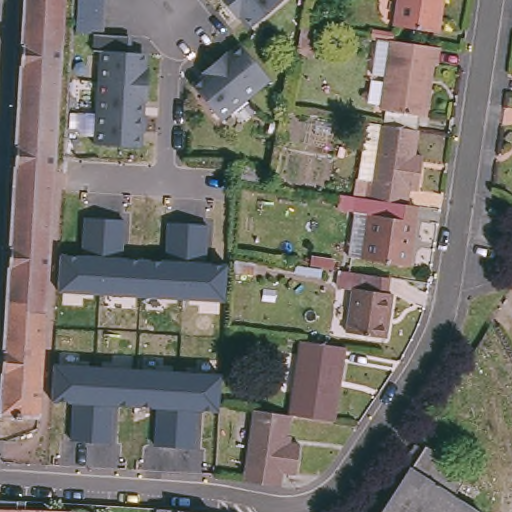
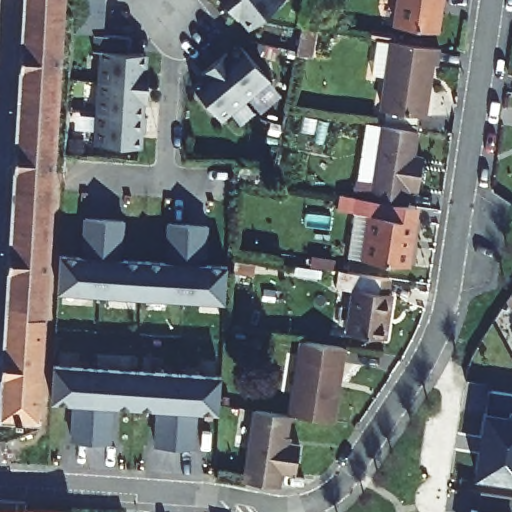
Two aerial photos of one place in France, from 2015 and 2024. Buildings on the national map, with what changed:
unchanged [(38,417),(0,415),(0,381),(23,0),(63,0),(38,417)]
unchanged [(93,42),(94,32),(95,27),(78,26),(78,14),(78,6),(79,0),(108,0),(107,2),(106,15),(106,19),(106,27),(130,29),(130,34),(129,45),(142,46),(147,53),(146,61),(151,61),(150,80),(100,77),(102,43),(93,42)]
unchanged [(228,11),(220,0),(242,0),(228,11)]
unchanged [(287,4),(252,32),(243,21),(239,24),(228,11),(242,0),(285,0),(287,4)]
unchanged [(443,7),(439,7),(435,32),(395,25),(399,0),(444,0),(443,7)]
unchanged [(436,60),(432,60),(423,112),(382,106),(388,64),(375,62),(378,33),(393,35),(439,42),(436,60)]
unchanged [(220,52),(224,56),(238,45),(238,46),(266,81),(240,102),(209,61),(220,52)]
unchanged [(216,121),(188,86),(200,76),(196,72),(209,61),(240,102),(216,121)]
unchanged [(145,96),(144,110),(98,107),(100,77),(150,80),(149,95),(145,96)]
unchanged [(147,126),(142,126),(141,142),(96,139),(98,107),(144,110),(148,110),(147,126)]
unchanged [(410,182),(407,198),(417,200),(417,202),(355,192),(355,190),(371,192),(383,119),(418,125),(415,150),(425,151),(423,162),(420,183),(410,182)]
unchanged [(238,178),(240,166),(245,166),(267,170),(265,182),(238,178)]
unchanged [(352,206),(355,192),(417,202),(408,261),(362,253),(345,251),(352,206)]
unchanged [(59,290),(61,248),(82,250),(84,215),(125,219),(122,252),(163,255),(165,222),(205,226),(205,258),(222,259),(220,303),(59,290)]
unchanged [(387,291),(393,292),(386,337),(347,332),(353,287),(338,284),(339,278),(330,277),(330,268),(340,270),(389,277),(387,291)]
unchanged [(310,417),(288,414),(300,340),(344,347),(333,421),(310,417)]
unchanged [(214,413),(198,412),(195,447),(155,446),(156,410),(116,407),(114,442),(70,440),(72,405),(51,404),(54,362),(217,372),(214,413)]
new [(512,392),(512,481),(476,476),(480,452),(481,438),(488,389),(512,392)]
unchanged [(285,442),(299,444),(294,473),(280,472),(278,486),(243,480),(253,408),(263,410),(288,414),(285,442)]
demolished [(486,509),(485,512),(377,512),(425,443),(465,466),(452,491),(486,509)]
new [(480,507),(481,492),(512,497),(512,512),(470,512),(471,506),(480,507)]
unchanged [(4,498),(17,499),(17,501),(26,501),(26,510),(71,511),(95,512),(0,512),(0,498),(4,498)]
demolished [(151,512),(150,508),(195,512),(151,512)]

